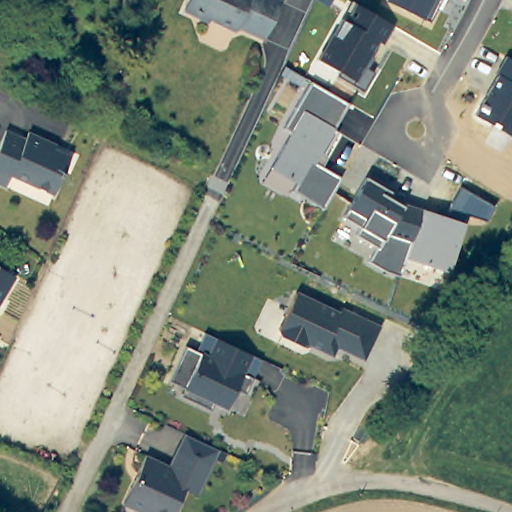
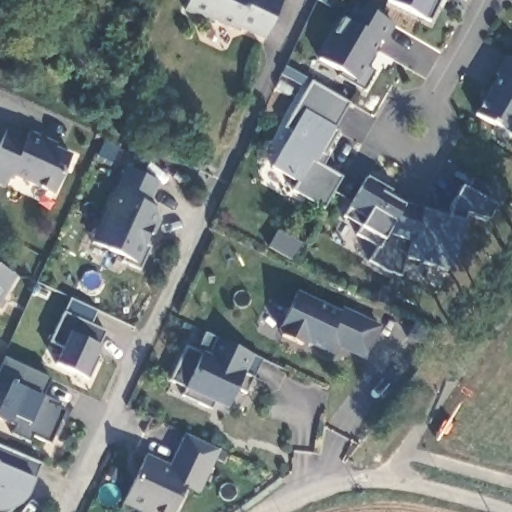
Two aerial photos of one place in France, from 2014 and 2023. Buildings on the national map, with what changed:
unchanged [(263,39),(236,26),(234,31),(208,19),(207,23),(182,11),(188,0),(280,0),(281,1),(263,39)]
unchanged [(423,19),(384,1),(384,0),(439,0),(429,21),(423,19)]
unchanged [(393,25),(381,44),(376,41),(361,66),(371,71),(361,90),(333,76),(336,71),(317,60),(341,18),(345,21),(354,4),(393,25)]
unchanged [(512,131),(509,135),(473,116),(506,57),(512,60),(512,131)]
unchanged [(347,104),(334,130),(321,152),(328,156),(322,168),(339,178),(322,208),(292,191),(296,184),(291,181),(283,194),(261,183),(270,169),(291,131),(284,127),(311,83),(347,104)]
unchanged [(26,139),(29,131),(47,140),(45,145),(71,156),(54,194),(13,175),(7,187),(0,183),(0,142),(5,130),(26,139)]
new [(149,204),(157,209),(146,245),(149,247),(140,269),(121,261),(123,258),(89,245),(125,166),(159,183),(149,204)]
unchanged [(390,192),(387,198),(402,207),(403,203),(421,209),(445,217),(460,188),(492,206),(486,222),(467,216),(464,222),(450,271),(404,259),(398,276),(385,273),(367,261),(375,248),(353,235),(358,227),(341,217),(347,208),(365,179),(390,192)]
unchanged [(0,300),(0,270),(13,278),(0,300)]
unchanged [(338,312),(340,307),(380,326),(364,360),(334,347),(330,356),(307,346),(301,347),(281,338),(278,329),(296,292),(338,312)]
new [(105,331),(98,345),(100,346),(96,354),(99,355),(89,378),(54,365),(62,347),(50,342),(65,313),(105,331)]
unchanged [(245,396),(235,391),(226,410),(210,403),(206,410),(180,398),(184,390),(168,383),(185,347),(196,353),(204,335),(216,340),(261,361),(245,396)]
new [(50,380),(42,396),(60,403),(57,408),(65,411),(49,443),(31,436),(29,442),(12,434),(15,425),(0,419),(0,403),(8,384),(0,379),(0,365),(3,358),(50,380)]
unchanged [(181,490),(171,512),(134,512),(119,505),(142,457),(166,467),(175,448),(181,435),(215,451),(209,464),(199,486),(194,496),(181,490)]
new [(34,480),(23,504),(9,512),(0,512),(0,465),(34,480)]

